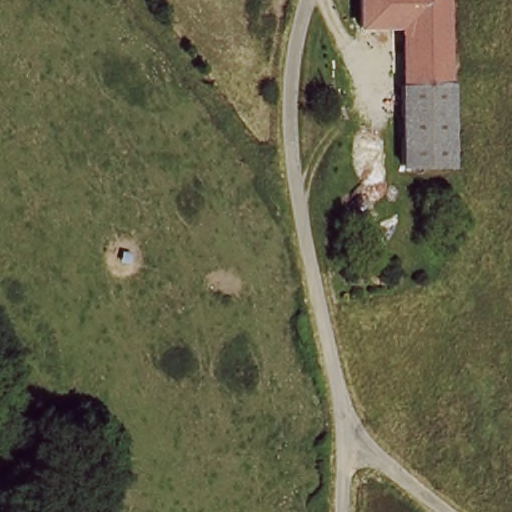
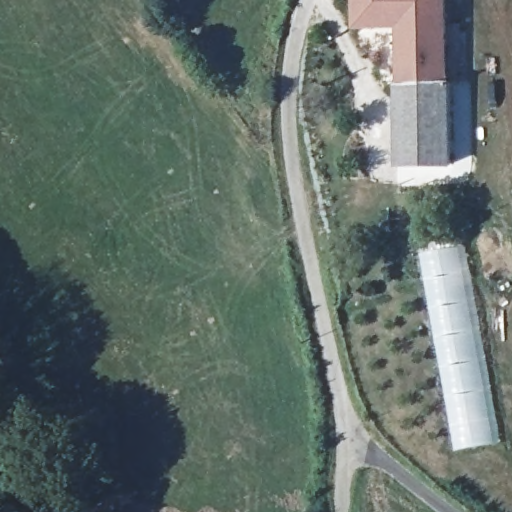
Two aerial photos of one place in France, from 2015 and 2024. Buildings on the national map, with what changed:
unchanged [(450,84),(452,166),(397,166),(395,86),(400,86),(400,29),(357,30),(357,0),(442,0),(446,84),(450,84)]
new [(420,252),(465,245),(499,442),(455,451),(420,252)]

